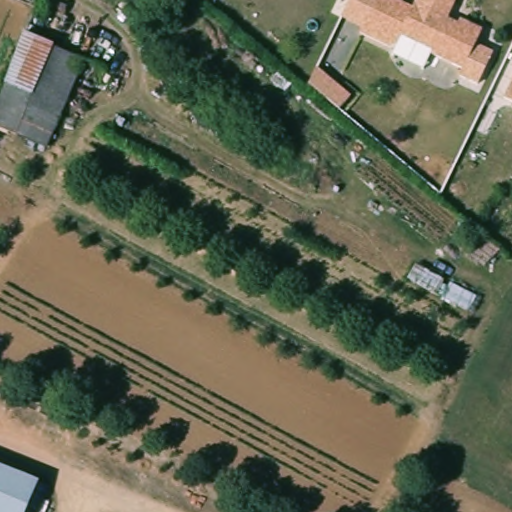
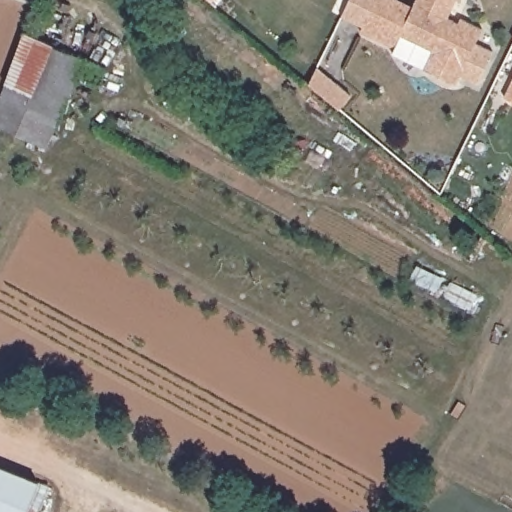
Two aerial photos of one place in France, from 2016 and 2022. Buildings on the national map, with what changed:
unchanged [(413,6),(416,0),(456,0),(448,18),(460,24),(462,18),(485,28),(478,43),(493,49),(482,83),(460,75),(463,62),(402,35),(397,50),(360,33),(362,25),(343,19),(351,0),(399,0),(413,6)]
unchanged [(0,134),(0,78),(18,33),(79,59),(41,152),(0,134)]
unchanged [(504,91),(512,74),(512,94),(504,91)]
unchanged [(24,512),(0,512),(0,477),(33,494),(24,512)]

